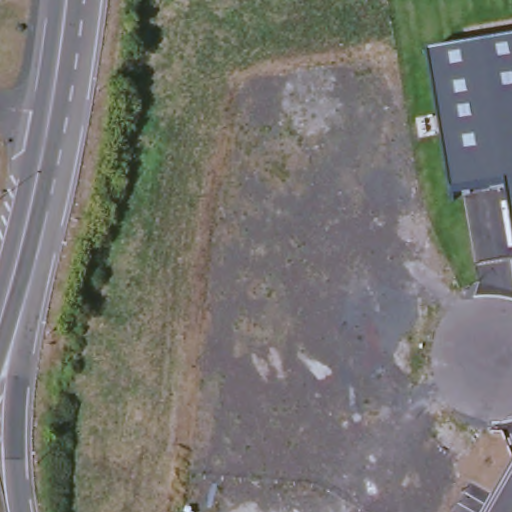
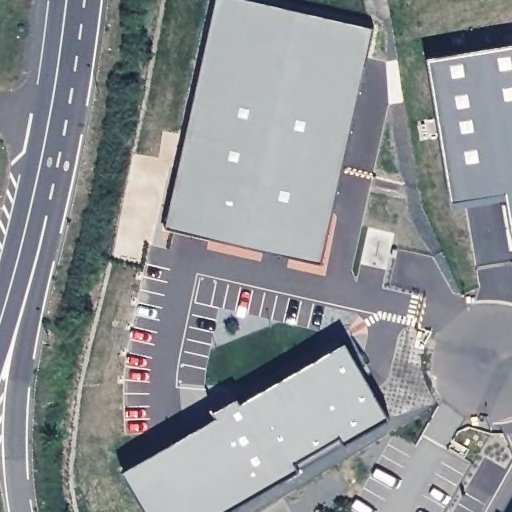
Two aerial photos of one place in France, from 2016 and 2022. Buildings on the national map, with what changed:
new [(373,27),(321,263),(166,225),(218,0),(248,0),(373,27)]
unchanged [(505,189),(451,198),(427,56),(512,41),(512,233),(505,189)]
new [(344,440),(339,434),(294,460),(298,467),(219,512),(148,512),(123,469),(217,415),(214,410),(236,396),(239,401),(345,341),(389,414),(344,440)]
new [(338,436),(341,444),(296,470),(292,463),(338,436)]

